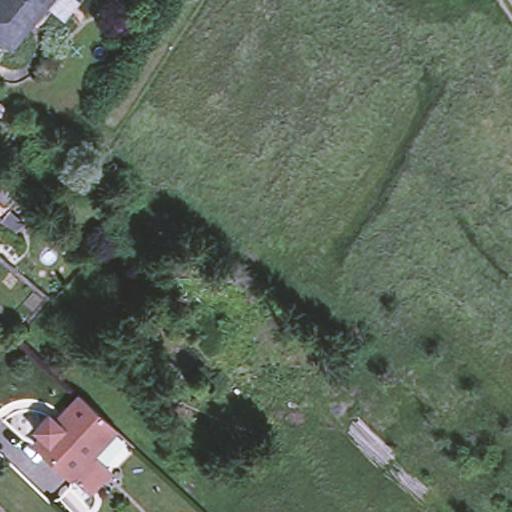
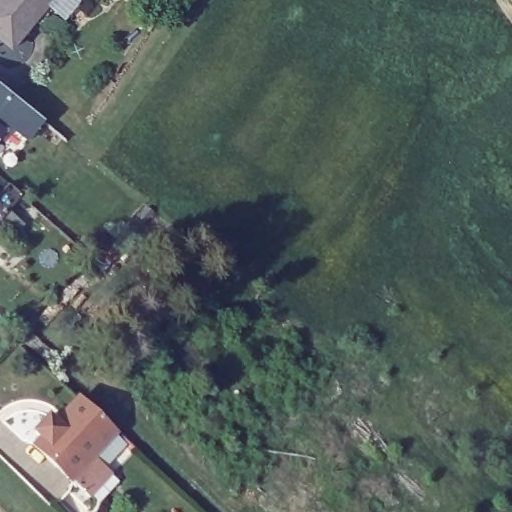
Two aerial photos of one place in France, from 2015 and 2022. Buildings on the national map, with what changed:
unchanged [(17,45),(0,31),(0,0),(83,0),(70,16),(58,7),(45,21),(40,16),(17,45)]
new [(28,142),(0,121),(0,87),(45,122),(28,142)]
new [(0,140),(0,126),(7,131),(0,140)]
unchanged [(5,210),(0,217),(0,182),(17,196),(5,210)]
unchanged [(42,438),(35,431),(49,416),(57,423),(67,411),(82,396),(118,431),(72,480),(36,445),(42,438)]
unchanged [(136,447),(90,497),(72,480),(118,431),(136,447)]

